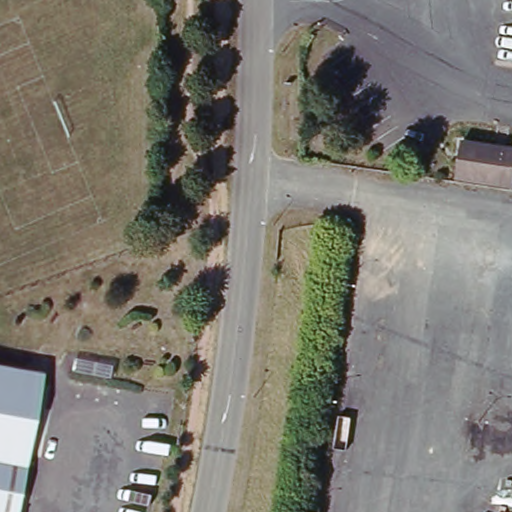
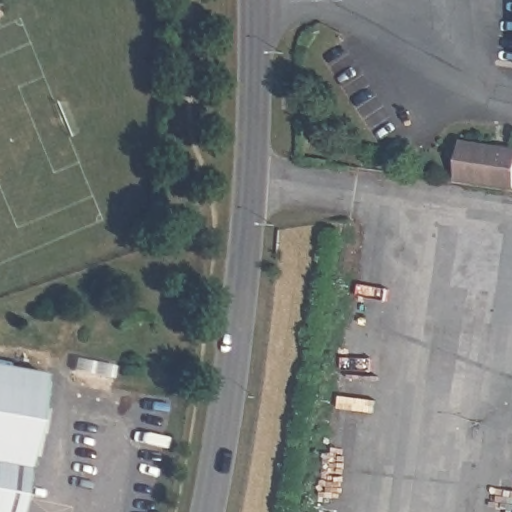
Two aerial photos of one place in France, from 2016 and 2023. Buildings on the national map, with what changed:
unchanged [(469,146),(512,152),(512,184),(464,177),(469,146)]
unchanged [(21,512),(0,512),(0,369),(43,376),(21,512)]

